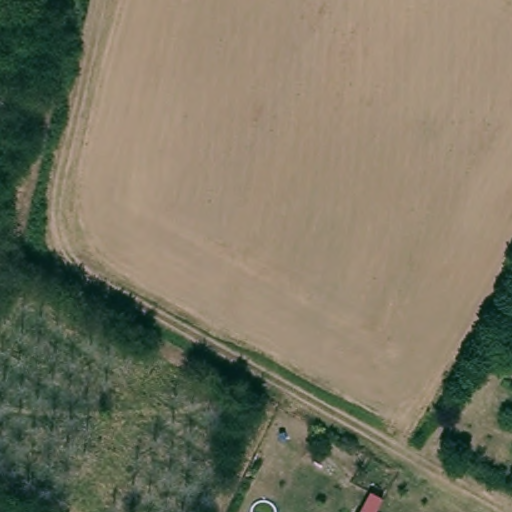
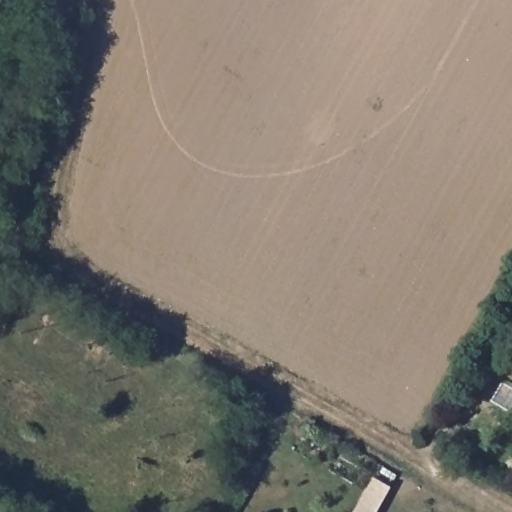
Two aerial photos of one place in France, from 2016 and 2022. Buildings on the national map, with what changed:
unchanged [(374,512),(361,512),(363,507),(374,512)]

